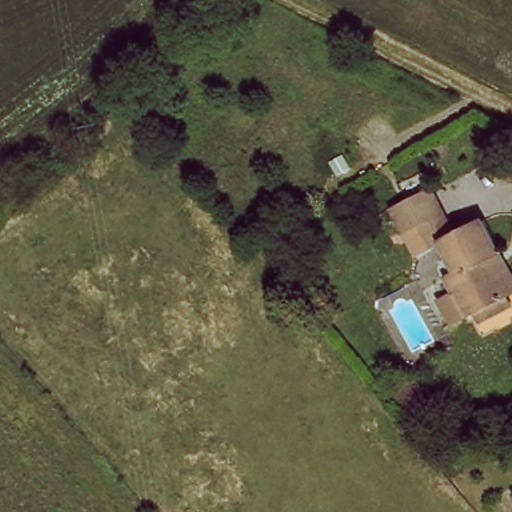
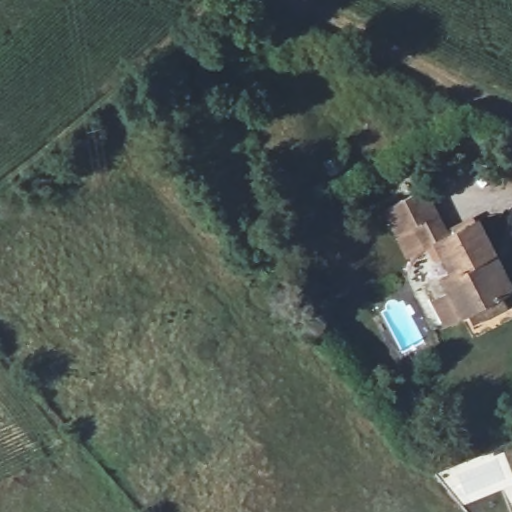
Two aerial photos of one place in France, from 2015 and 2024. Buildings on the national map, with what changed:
unchanged [(479,335),(471,322),(463,326),(445,336),(433,314),(451,305),(443,291),(453,284),(437,256),(427,261),(416,239),(399,248),(387,223),(425,203),(449,250),(479,234),(512,295),(512,299),(499,306),(507,320),(479,335)]

